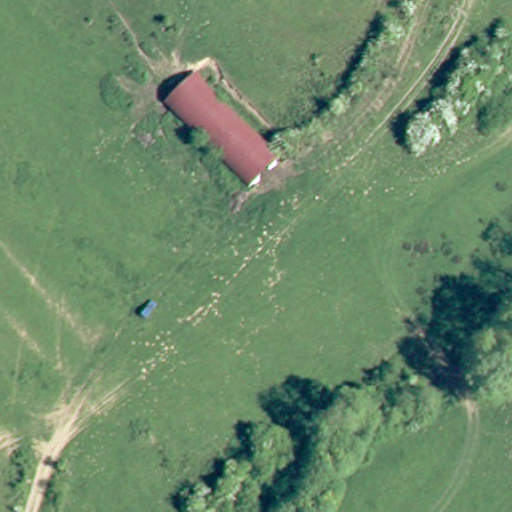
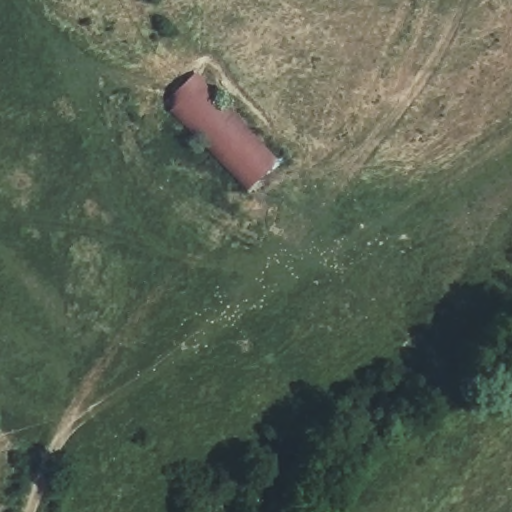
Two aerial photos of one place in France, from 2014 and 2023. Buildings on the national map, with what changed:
unchanged [(195,77),(278,163),(243,193),(162,105),(195,77)]

